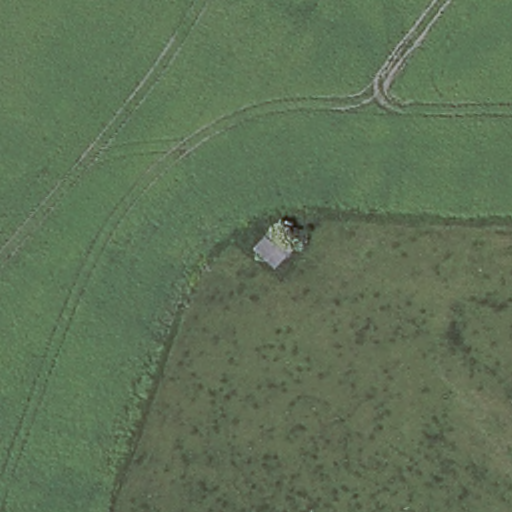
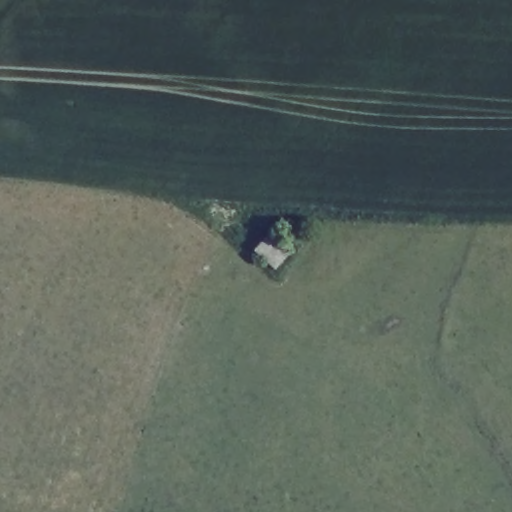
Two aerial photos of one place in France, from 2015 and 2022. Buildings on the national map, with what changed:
unchanged [(274,222),(297,252),(275,273),(253,246),(274,222)]

